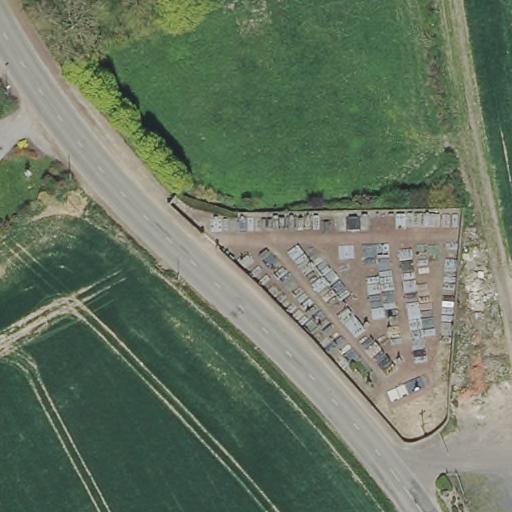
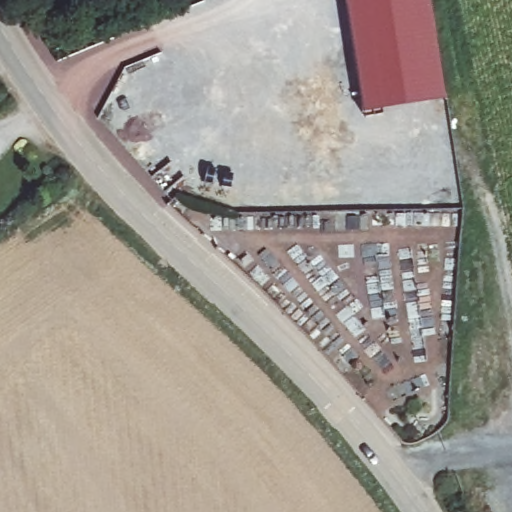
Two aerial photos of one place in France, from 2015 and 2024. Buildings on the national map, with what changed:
new [(348,7),(346,0),(395,0),(348,7)]
new [(395,0),(433,0),(448,98),(363,111),(348,7),(395,0)]

